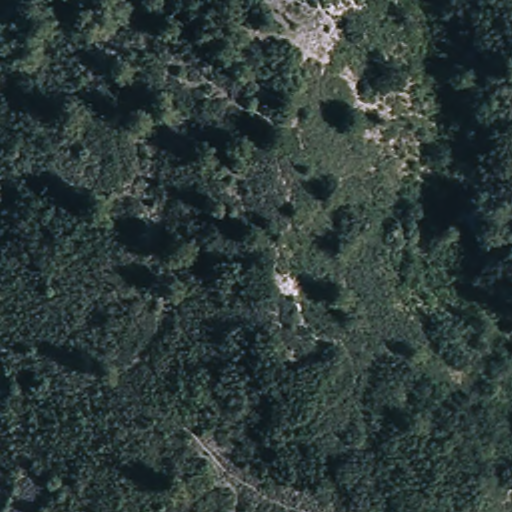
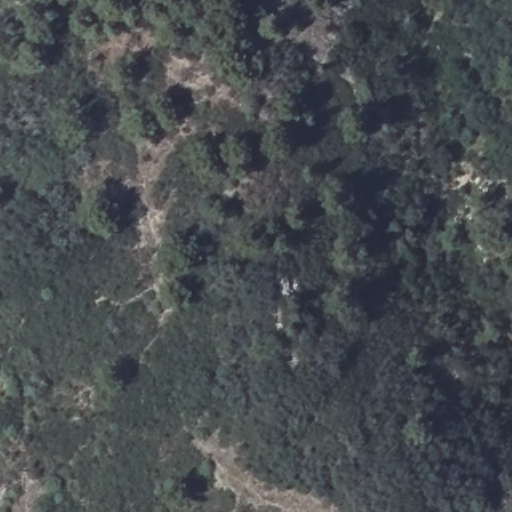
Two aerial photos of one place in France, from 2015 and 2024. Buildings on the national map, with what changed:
[]

